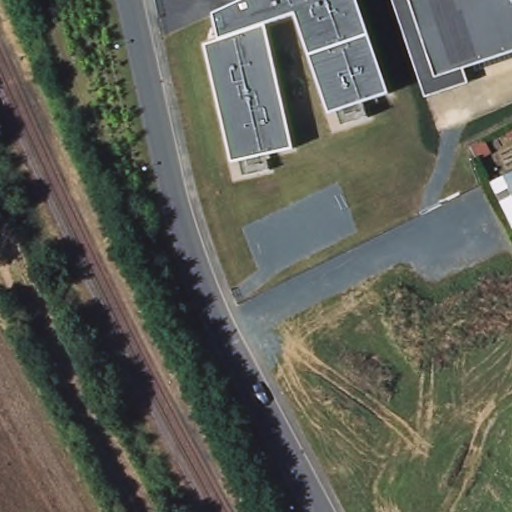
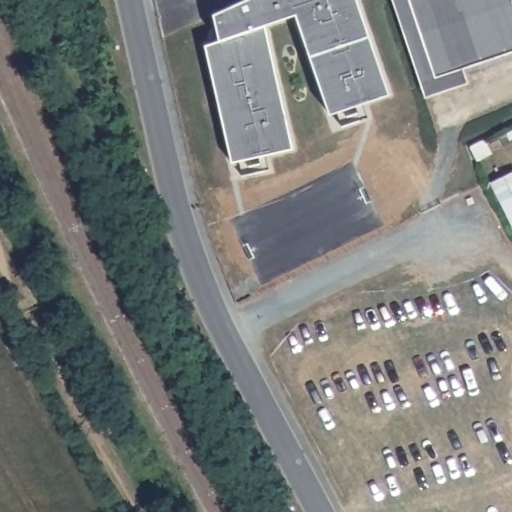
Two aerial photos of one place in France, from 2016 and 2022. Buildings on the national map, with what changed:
unchanged [(211,10),(235,0),(355,0),(387,91),(367,98),(371,110),(341,122),(332,111),(294,16),(270,25),(294,143),(234,157),(205,44),(221,38),(211,10)]
unchanged [(431,52),(451,45),(461,71),(472,67),(478,83),(439,98),(434,100),(393,0),(410,0),(431,52)]
unchanged [(461,71),(451,45),(431,52),(410,0),(512,0),(512,52),(472,67),(461,71)]
unchanged [(512,219),(496,189),(512,181),(512,219)]

